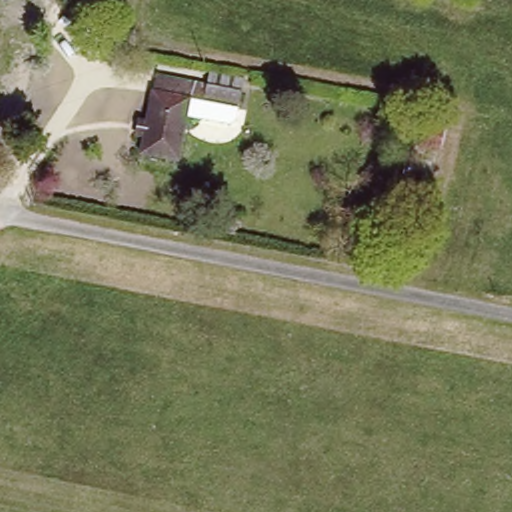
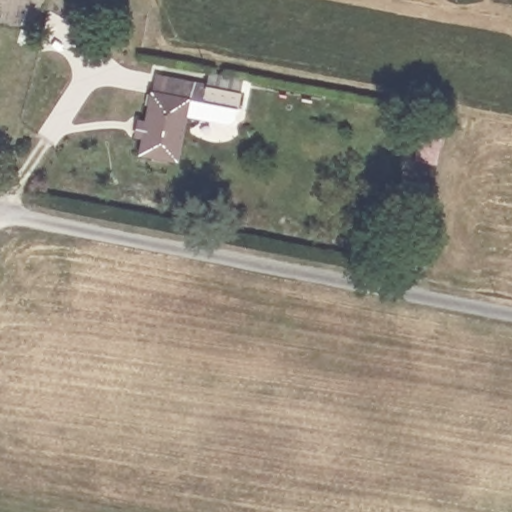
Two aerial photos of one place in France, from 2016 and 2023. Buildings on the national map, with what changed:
unchanged [(211,70),(212,62),(249,68),(243,97),(242,97),(240,110),(235,112),(190,105),(180,153),(143,146),(146,130),(138,129),(142,113),(149,115),(159,61),(211,70)]

